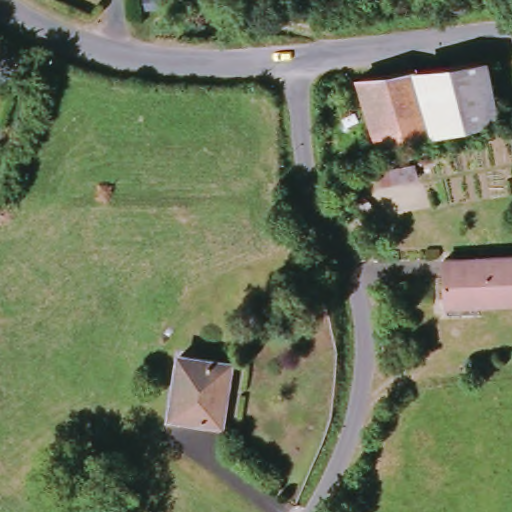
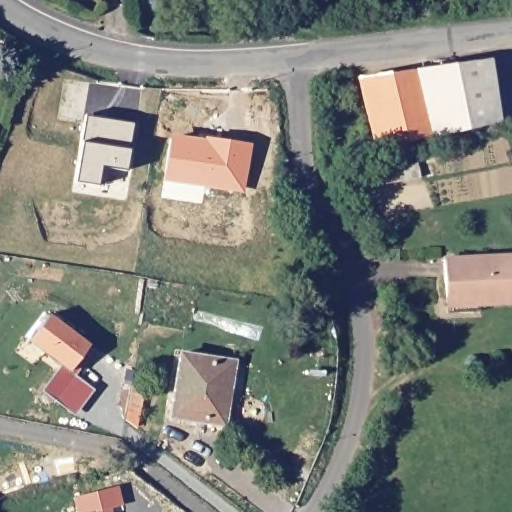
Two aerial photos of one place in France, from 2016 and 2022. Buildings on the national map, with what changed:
unchanged [(362,84),(486,56),(491,116),(430,131),(430,125),(372,137),(362,84)]
new [(132,123),(129,149),(126,170),(101,167),(97,186),(75,182),(81,142),(85,115),(132,123)]
new [(210,142),(211,137),(251,144),(246,187),(209,182),(209,185),(166,179),(172,137),(210,142)]
unchanged [(482,297),(450,298),(447,260),(512,256),(512,304),(482,306),(482,297)]
new [(44,314),(85,345),(66,370),(59,365),(25,340),(44,314)]
unchanged [(171,418),(176,358),(228,362),(222,423),(171,418)]
new [(59,365),(66,370),(92,390),(73,415),(41,390),(59,365)]
new [(121,506),(111,510),(112,512),(76,512),(72,496),(116,485),(121,506)]

